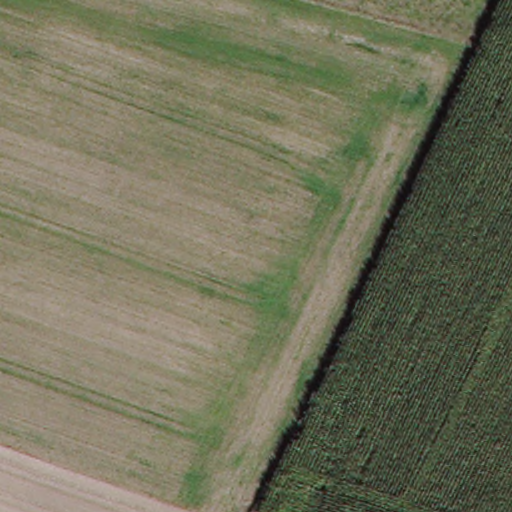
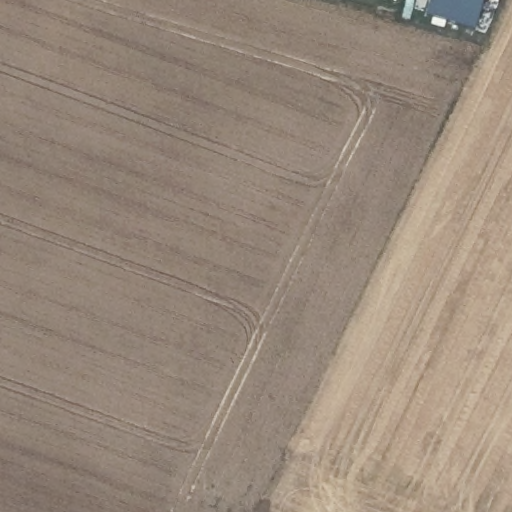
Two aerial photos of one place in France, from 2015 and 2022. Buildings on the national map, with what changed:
new [(427,16),(432,0),(485,0),(476,31),(427,16)]

